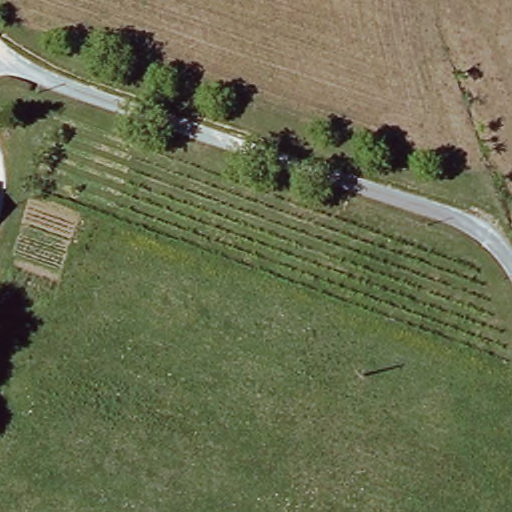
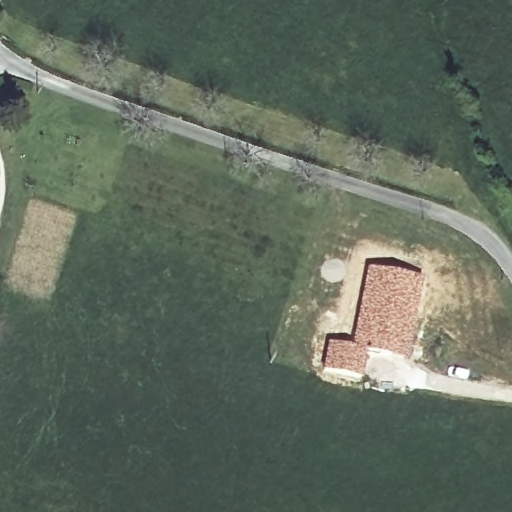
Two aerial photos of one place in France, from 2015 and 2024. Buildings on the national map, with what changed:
new [(365,267),(422,278),(408,362),(367,354),(350,346),(365,267)]
new [(327,342),(350,346),(367,354),(362,377),(322,371),(327,342)]

